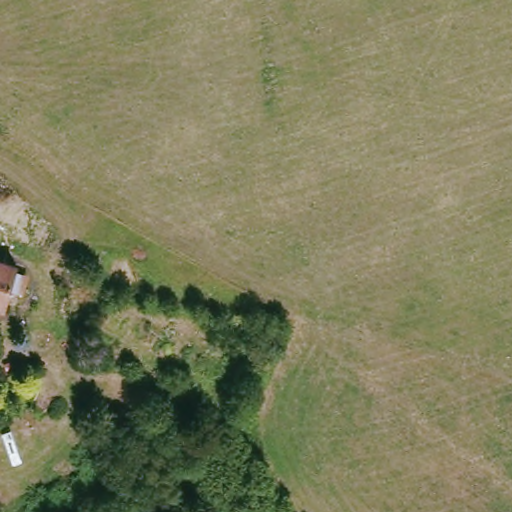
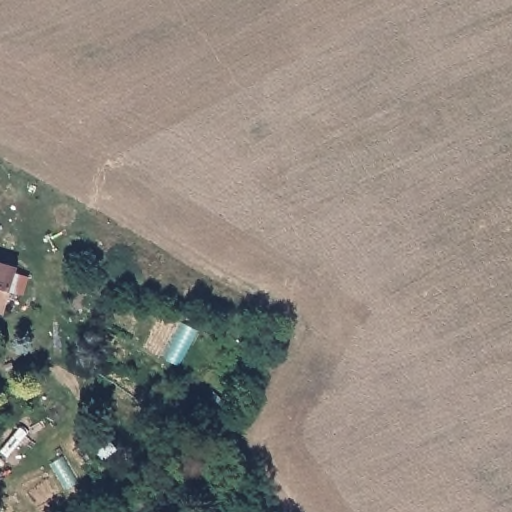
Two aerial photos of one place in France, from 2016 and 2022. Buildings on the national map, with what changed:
unchanged [(25,267),(11,311),(0,308),(0,259),(25,267)]

